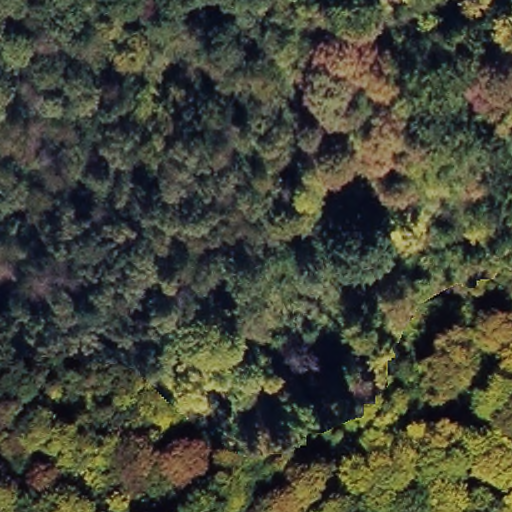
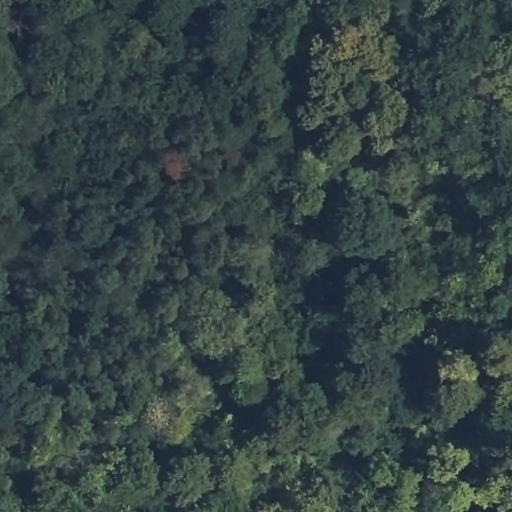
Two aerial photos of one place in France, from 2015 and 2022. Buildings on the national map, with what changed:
[]

